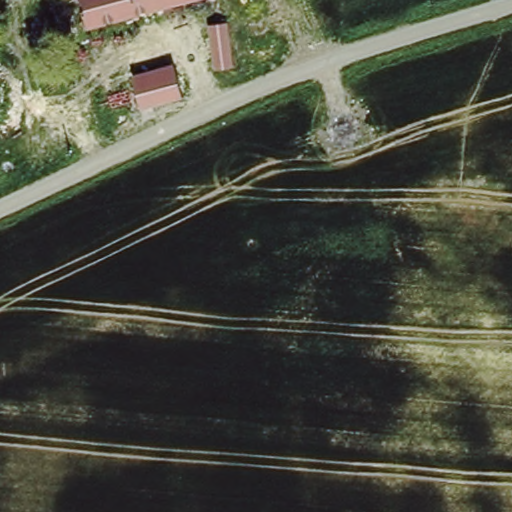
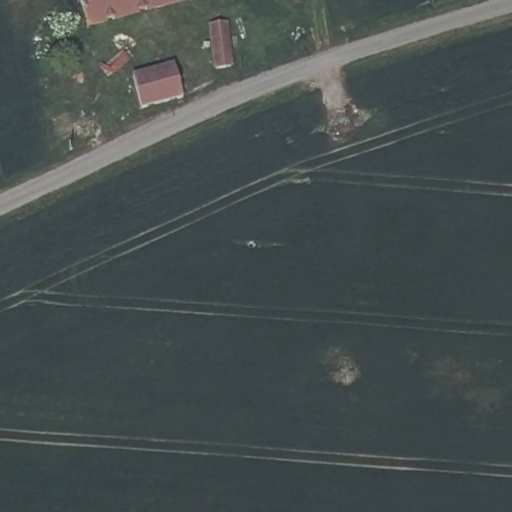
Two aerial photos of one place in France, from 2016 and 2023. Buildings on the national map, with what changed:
unchanged [(83,26),(82,20),(75,21),(70,0),(186,0),(83,26)]
unchanged [(231,23),(231,67),(216,67),(215,23),(231,23)]
unchanged [(174,67),(181,99),(137,111),(129,78),(174,67)]

